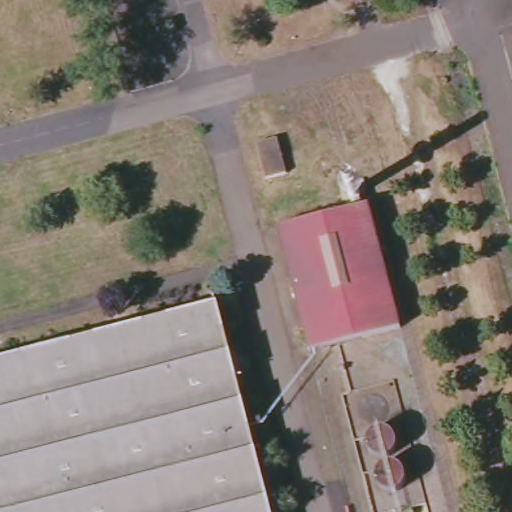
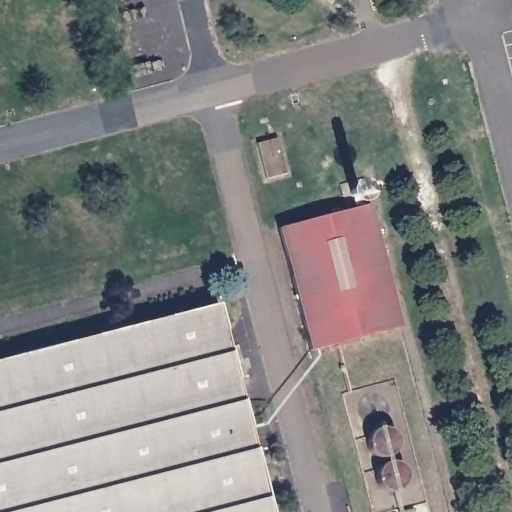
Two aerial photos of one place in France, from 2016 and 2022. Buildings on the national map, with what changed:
unchanged [(291,136),(301,174),(277,181),(267,141),(291,136)]
unchanged [(367,206),(399,329),(312,352),(280,229),(367,206)]
unchanged [(214,313),(266,512),(0,512),(0,369),(214,313)]

